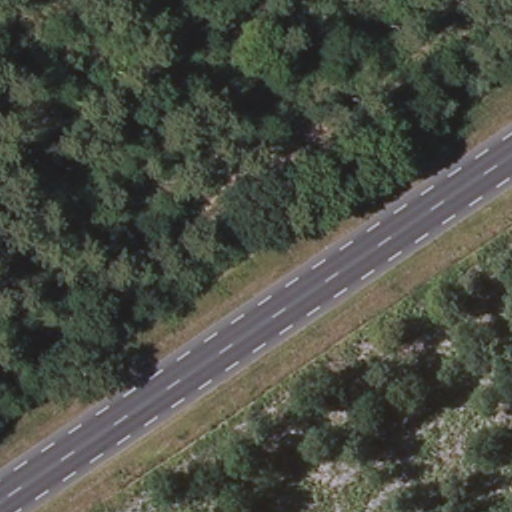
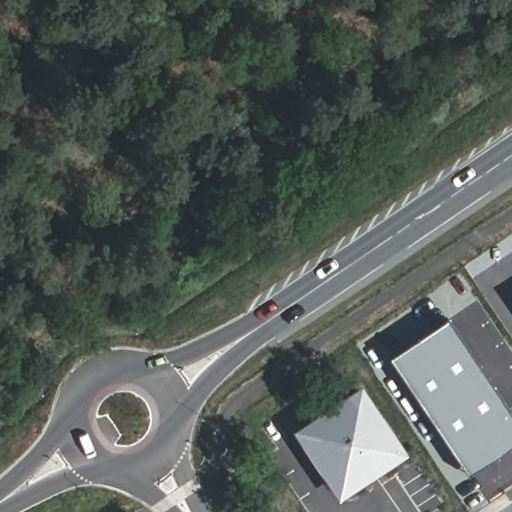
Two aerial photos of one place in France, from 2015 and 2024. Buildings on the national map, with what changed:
new [(447,320),(512,415),(512,445),(469,475),(391,358),(447,320)]
new [(407,453),(369,479),(328,417),(367,392),(407,453)]
new [(369,479),(346,494),(306,432),(328,417),(369,479)]

